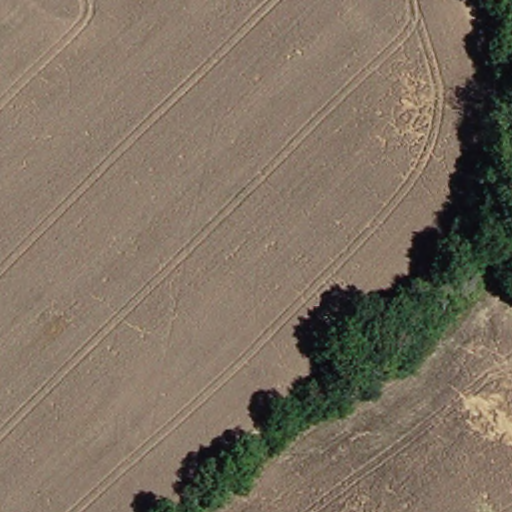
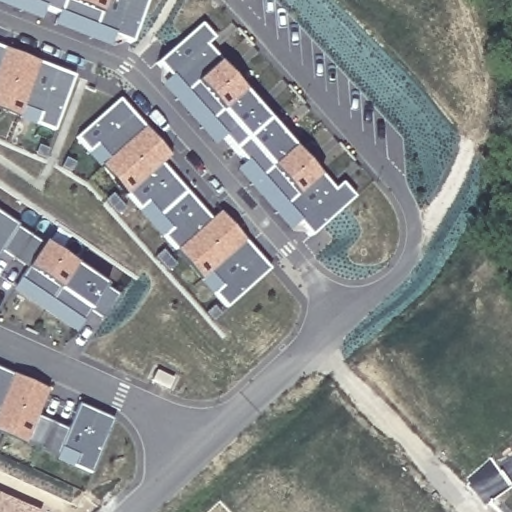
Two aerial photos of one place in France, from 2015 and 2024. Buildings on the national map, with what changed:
new [(43,16),(1,0),(151,0),(134,40),(129,39),(117,45),(58,22),(62,12),(48,6),(43,16)]
new [(203,22),(216,37),(208,44),(223,60),(220,62),(270,118),(257,130),(320,202),(329,194),(342,209),(311,235),(159,61),(203,22)]
new [(0,44),(77,75),(55,129),(37,122),(2,108),(0,107),(0,44)]
new [(165,235),(140,206),(115,177),(90,147),(78,134),(123,95),(184,165),(175,173),(224,230),(232,222),(273,268),(228,307),(215,293),(191,264),(165,235)]
new [(3,248),(0,253),(0,208),(21,222),(20,224),(45,241),(46,240),(109,282),(108,284),(121,293),(105,316),(92,308),(83,321),(78,328),(15,286),(20,277),(29,265),(3,248)]
new [(29,440),(28,442),(11,434),(0,429),(0,365),(52,388),(41,413),(71,427),(82,401),(118,417),(94,471),(77,463),(59,455),(60,453),(29,440)]
new [(0,494),(37,512),(0,512),(0,494)]

